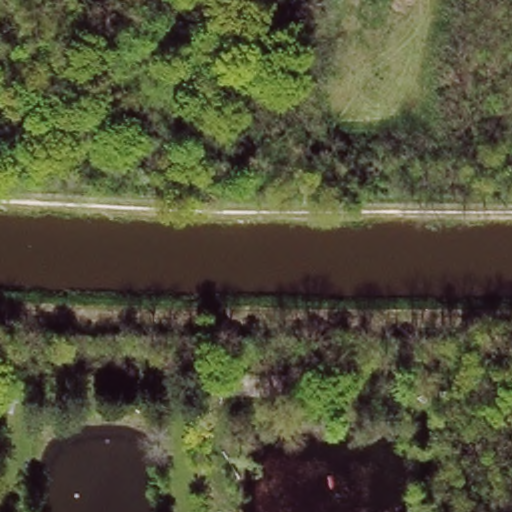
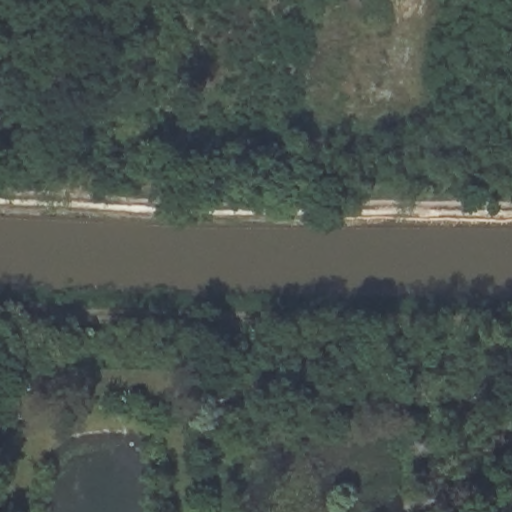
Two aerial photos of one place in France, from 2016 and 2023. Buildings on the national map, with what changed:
unchanged [(226,396),(225,371),(293,372),(293,396),(226,396)]

